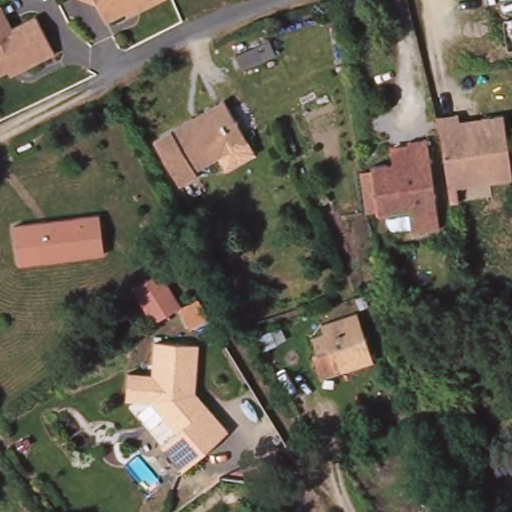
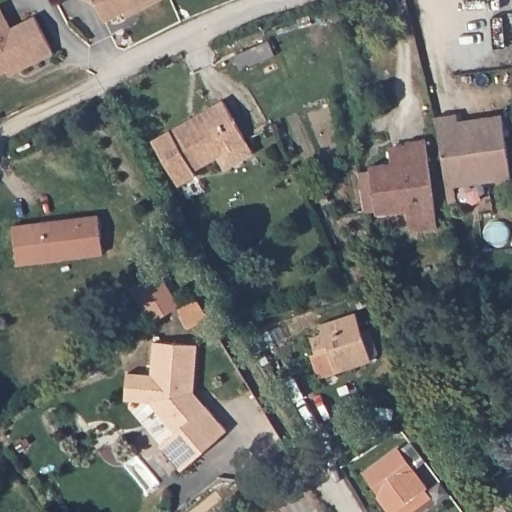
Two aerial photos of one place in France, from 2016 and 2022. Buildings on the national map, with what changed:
unchanged [(94,1),(89,0),(157,0),(102,21),(94,1)]
unchanged [(8,27),(32,16),(51,53),(0,76),(0,11),(8,27)]
unchanged [(242,62),(273,49),(279,64),(248,77),(242,62)]
unchanged [(230,173),(224,160),(200,174),(202,177),(182,188),(159,143),(230,103),(252,144),(258,156),(230,173)]
unchanged [(453,114),(455,119),(498,112),(508,179),(452,185),(455,201),(447,203),(436,116),(453,114)]
unchanged [(388,156),(390,165),(412,161),(408,137),(428,134),(442,222),(417,226),(413,207),(384,212),(382,197),(372,199),(372,195),(371,185),(367,164),(379,162),(378,158),(388,156)]
unchanged [(107,217),(110,255),(25,263),(22,224),(107,217)]
unchanged [(136,287),(164,269),(185,304),(157,321),(136,287)]
unchanged [(194,300),(201,298),(212,315),(205,320),(197,325),(186,305),(194,300)]
unchanged [(336,372),(332,351),(320,353),(317,336),(328,334),(327,326),(365,319),(372,366),(336,372)]
unchanged [(208,347),(198,393),(225,438),(174,469),(157,441),(175,430),(154,396),(167,338),(208,347)]
new [(401,452),(430,489),(398,512),(391,512),(381,498),(383,497),(368,476),(401,452)]
unchanged [(478,500),(486,495),(498,486),(507,499),(512,496),(512,512),(486,512),(478,500)]
unchanged [(454,511),(455,512),(453,512),(454,511)]

